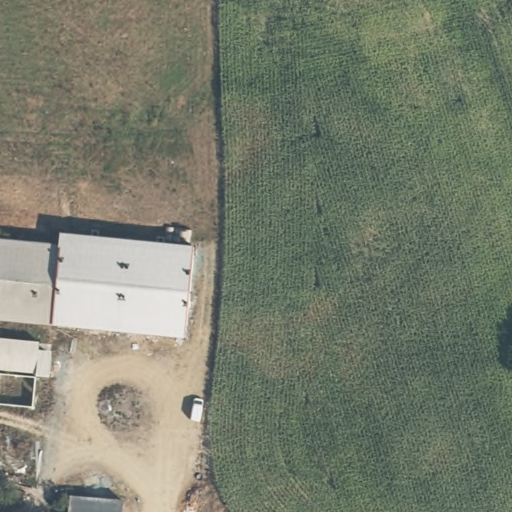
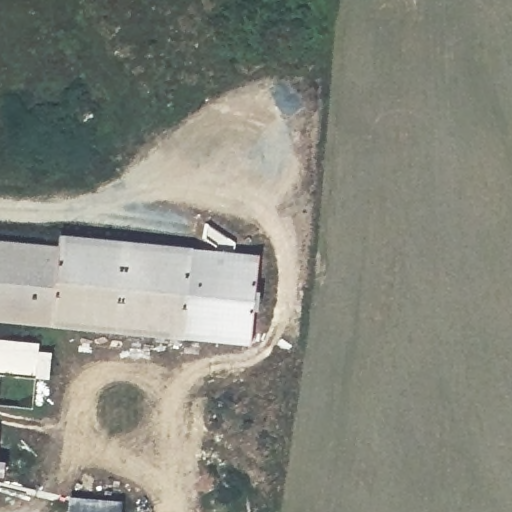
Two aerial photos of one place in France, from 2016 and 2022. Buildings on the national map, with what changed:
unchanged [(60,233),(193,247),(186,334),(53,320),(61,246),(60,233)]
unchanged [(61,246),(53,320),(0,316),(0,240),(61,246)]
new [(193,247),(259,253),(251,340),(186,334),(193,247)]
unchanged [(43,340),(42,348),(53,348),(51,381),(33,380),(34,372),(0,370),(0,337),(43,340)]
unchanged [(2,425),(0,450),(0,424),(2,425)]
unchanged [(71,512),(71,492),(126,497),(126,512),(71,512)]

